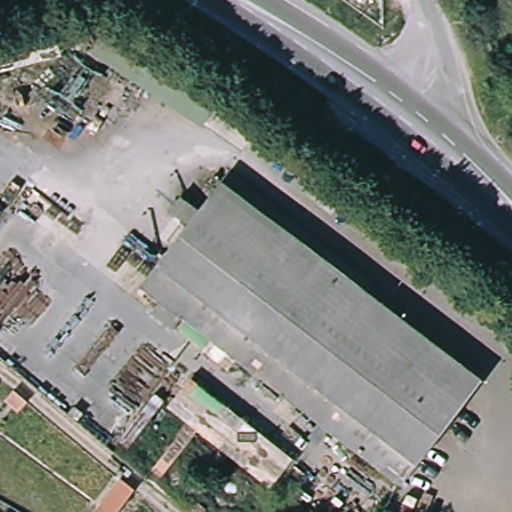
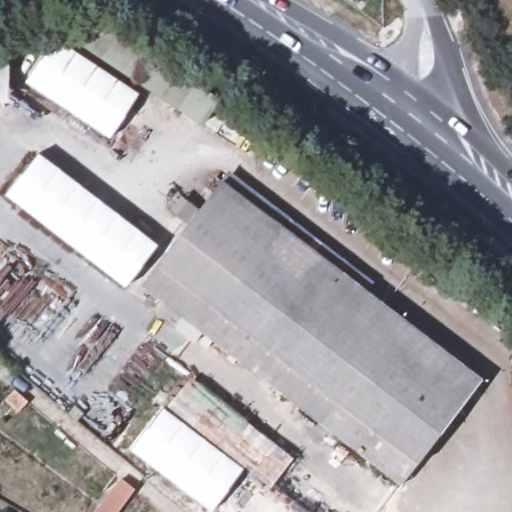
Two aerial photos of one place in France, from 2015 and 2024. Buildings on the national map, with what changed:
unchanged [(211,129),(80,44),(98,16),(225,101),(211,129)]
new [(55,38),(137,92),(108,138),(25,82),(55,38)]
new [(157,246),(125,288),(5,195),(38,154),(157,246)]
unchanged [(404,482),(140,283),(222,180),(483,378),(404,482)]
unchanged [(292,455),(269,485),(167,402),(191,376),(292,455)]
new [(241,468),(212,510),(130,449),(162,408),(241,468)]
unchanged [(137,490),(121,512),(94,512),(119,477),(137,490)]

